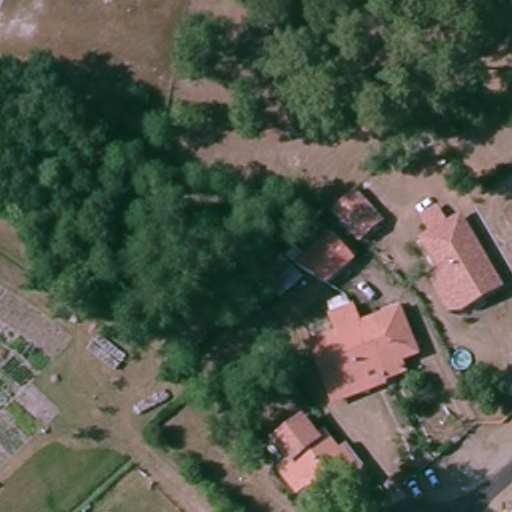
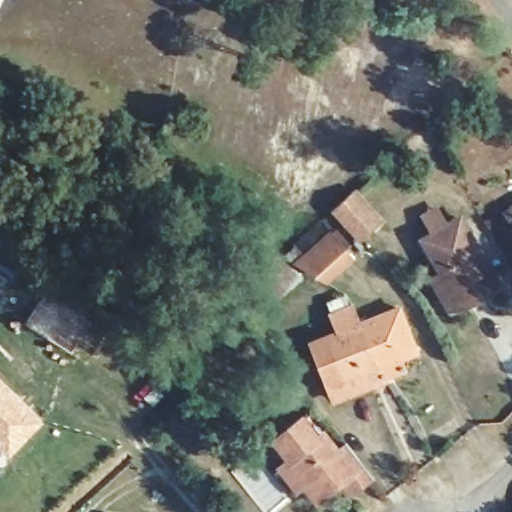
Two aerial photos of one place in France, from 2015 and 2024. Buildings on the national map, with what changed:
unchanged [(354,192),(383,220),(361,241),(332,212),(354,192)]
unchanged [(451,310),(431,280),(442,272),(423,242),(459,220),(500,286),(482,297),(465,307),(451,310)]
unchanged [(343,236),(359,257),(330,277),(318,263),(282,297),(268,278),(286,262),(275,247),(311,222),(343,236)]
unchanged [(326,387),(312,345),(339,336),(331,317),(355,307),(363,326),(398,313),(400,312),(405,323),(408,326),(416,357),(403,362),(406,375),(386,382),(331,402),(326,387)]
new [(10,457),(0,448),(0,379),(43,422),(10,457)]
unchanged [(280,478),(288,472),(268,448),(297,426),(313,447),(319,442),(331,457),(340,447),(370,483),(355,497),(347,487),(318,508),(305,492),(296,499),(280,478)]

